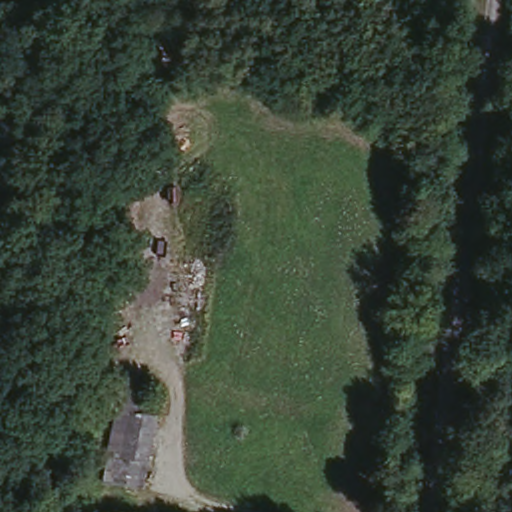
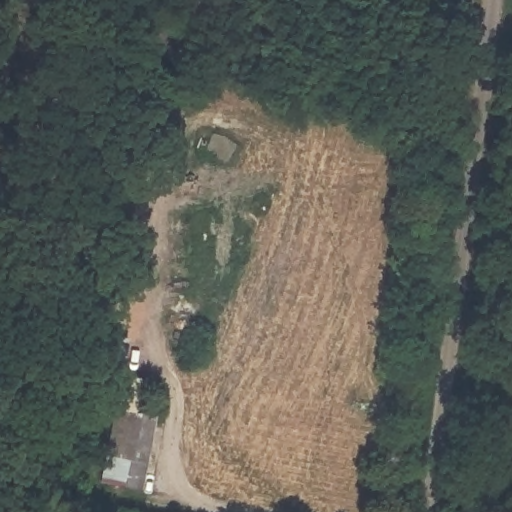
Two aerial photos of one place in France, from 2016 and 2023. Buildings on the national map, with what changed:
unchanged [(142,411),(136,457),(110,452),(115,406),(142,411)]
unchanged [(149,505),(148,512),(120,512),(121,501),(149,505)]

